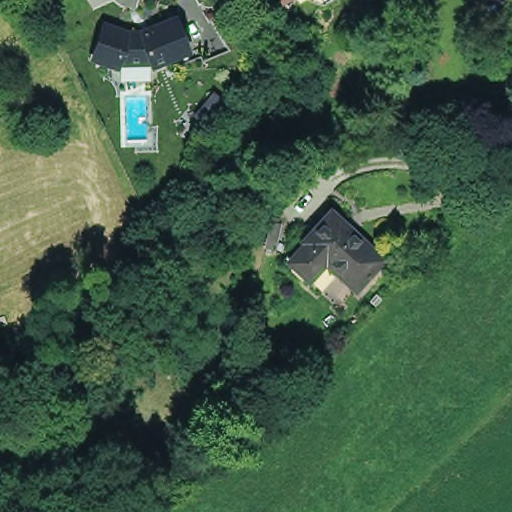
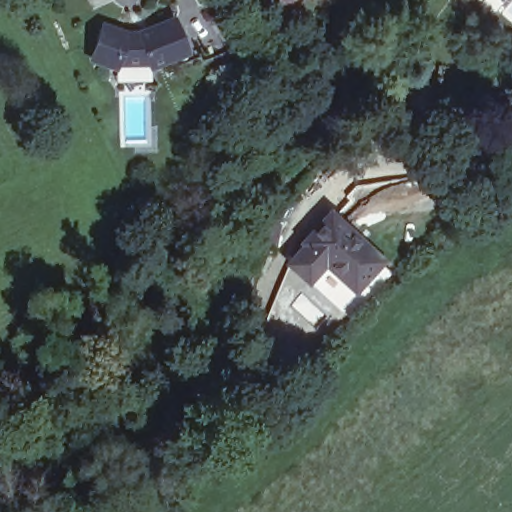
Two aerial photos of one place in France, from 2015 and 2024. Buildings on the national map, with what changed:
unchanged [(305,0),(327,0),(310,9),(305,0)]
unchanged [(95,26),(117,35),(129,36),(164,24),(175,57),(139,69),(137,65),(110,64),(107,63),(105,68),(80,57),(93,29),(95,26)]
unchanged [(333,208),(385,258),(357,288),(327,260),(311,278),(290,259),(307,240),(305,238),(333,208)]
unchanged [(282,225),(277,251),(267,249),(272,223),(273,219),(280,220),(280,224),(282,225)]

